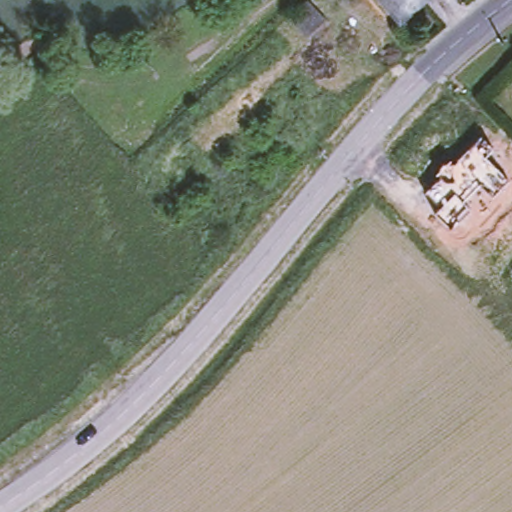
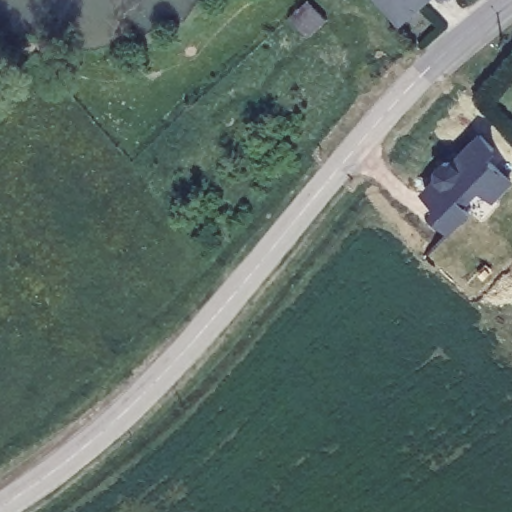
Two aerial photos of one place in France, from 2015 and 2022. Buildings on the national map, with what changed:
unchanged [(376,0),(420,0),(395,22),(376,0)]
unchanged [(308,36),(297,25),(290,18),(309,1),(315,8),(327,20),(308,36)]
unchanged [(436,181),(437,182),(440,178),(439,177),(439,169),(445,163),(452,163),(454,164),(458,161),(457,160),(481,136),(493,148),(485,156),(510,181),(493,197),(480,184),(463,201),(470,209),(450,229),(434,213),(440,208),(425,193),(436,181)]

